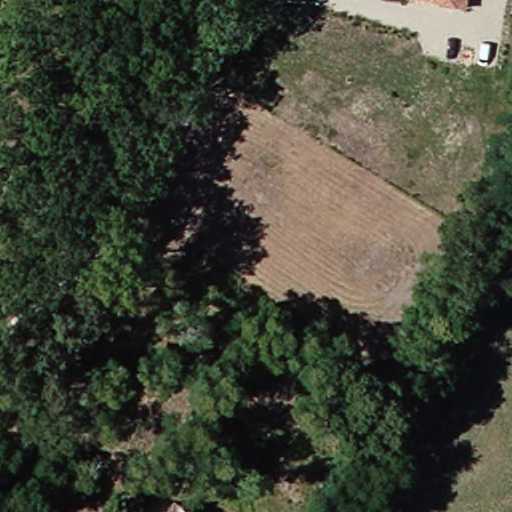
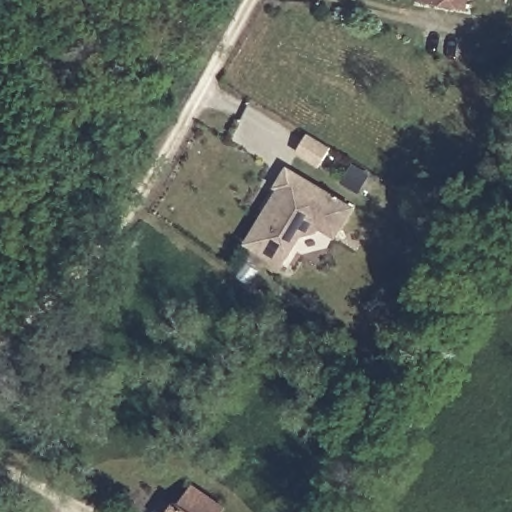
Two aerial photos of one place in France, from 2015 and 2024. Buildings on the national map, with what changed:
new [(245,244),(279,189),(275,188),(287,168),(354,207),(335,238),(320,229),(301,235),(284,267),(245,244)]
unchanged [(164,497),(191,512),(153,512),(164,497)]

